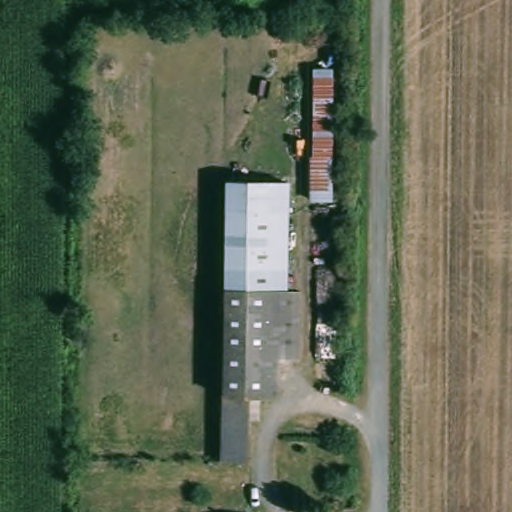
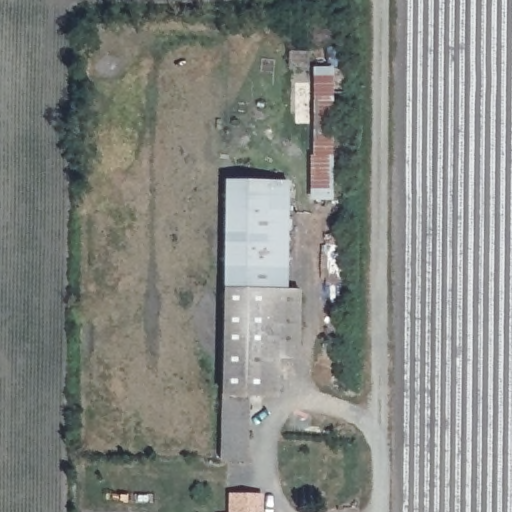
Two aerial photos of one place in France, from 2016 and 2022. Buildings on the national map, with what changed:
unchanged [(331,202),(311,199),(313,111),(293,111),(295,65),(333,67),(331,202)]
unchanged [(285,180),(285,211),(221,210),(221,180),(285,180)]
unchanged [(261,290),(221,290),(221,210),(285,211),(285,290),(261,290)]
unchanged [(260,351),(259,399),(243,398),(220,397),(221,290),(261,290),(260,351)]
unchanged [(261,290),(285,290),(297,290),(296,351),(260,351),(261,290)]
unchanged [(220,397),(243,398),(241,459),(220,460),(220,397)]

